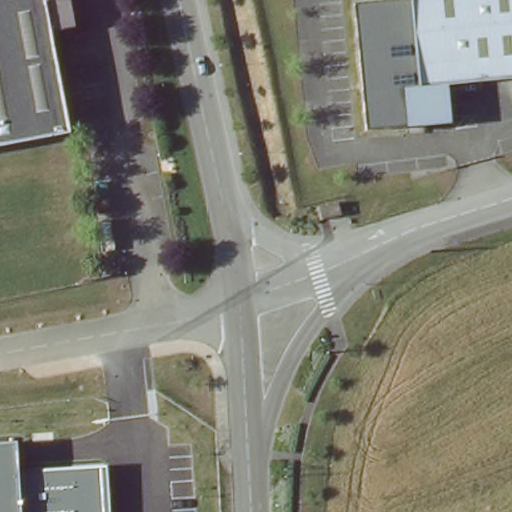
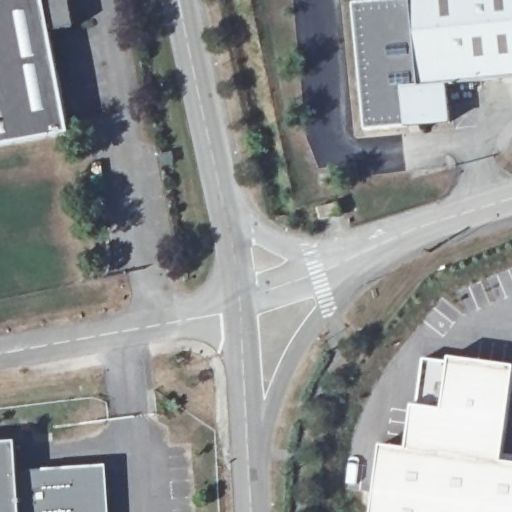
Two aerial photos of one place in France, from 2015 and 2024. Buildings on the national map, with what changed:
unchanged [(75,27),(51,32),(70,133),(0,146),(0,0),(70,0),(75,27)]
unchanged [(444,81),(447,118),(360,126),(349,0),(512,0),(512,74),(444,81)]
new [(408,450),(413,405),(423,359),(450,364),(451,358),(512,366),(512,389),(503,462),(512,463),(512,512),(373,512),(381,445),(408,450)]
unchanged [(18,471),(106,466),(109,512),(0,512),(0,443),(15,442),(18,471)]

